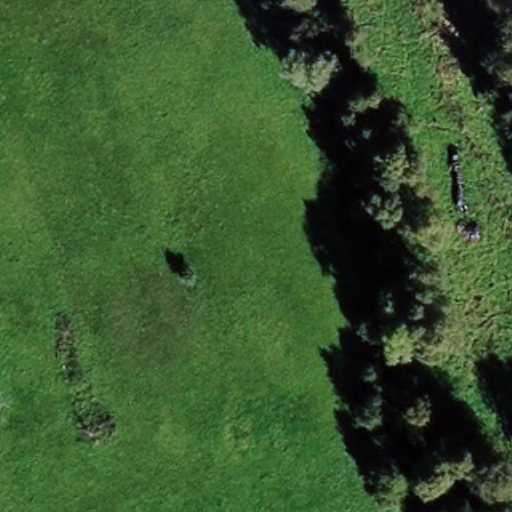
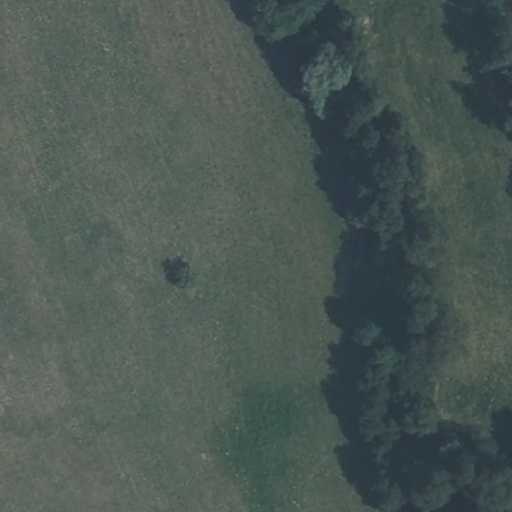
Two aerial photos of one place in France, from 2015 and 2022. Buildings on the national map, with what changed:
[]

